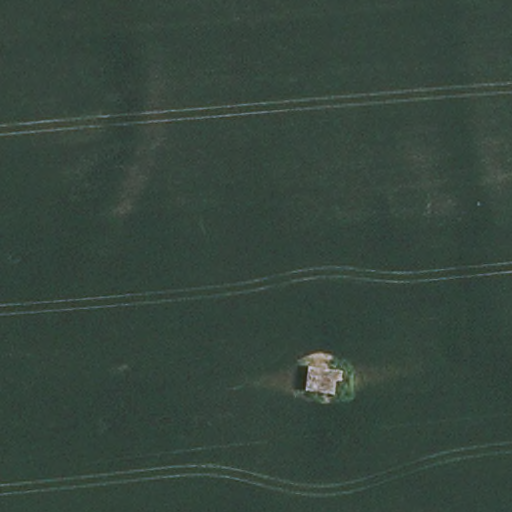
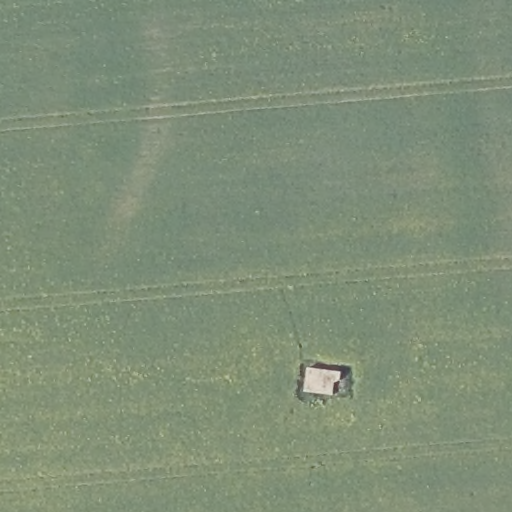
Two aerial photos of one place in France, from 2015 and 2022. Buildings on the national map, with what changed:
unchanged [(303,394),(304,379),(306,369),(341,374),(340,378),(332,399),(303,394)]

